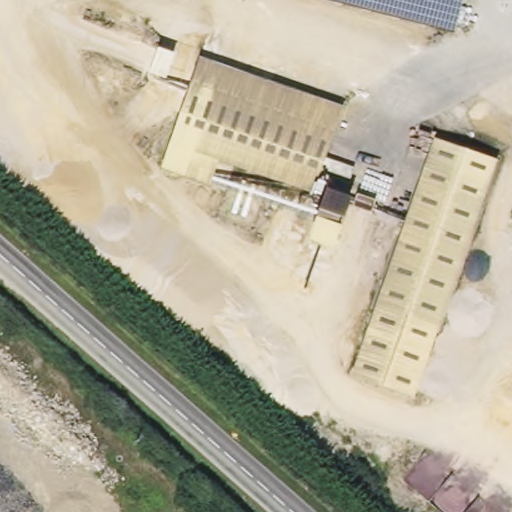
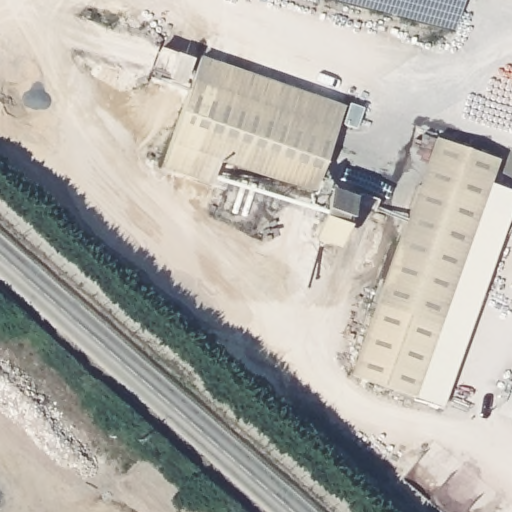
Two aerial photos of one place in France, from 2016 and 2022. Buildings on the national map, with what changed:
unchanged [(310,0),(465,0),(455,38),(310,0)]
unchanged [(342,106),(316,192),(219,163),(211,186),(158,169),(197,57),(342,106)]
unchanged [(432,138),(497,160),(437,330),(375,304),(432,138)]
unchanged [(322,191),(352,197),(336,254),(306,240),(322,191)]
unchanged [(413,393),(350,369),(375,304),(437,330),(413,393)]

